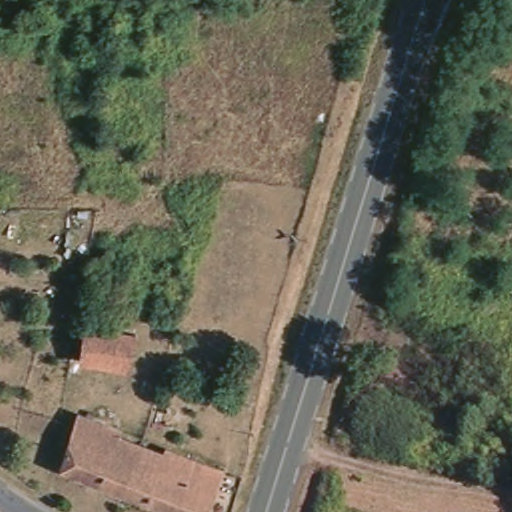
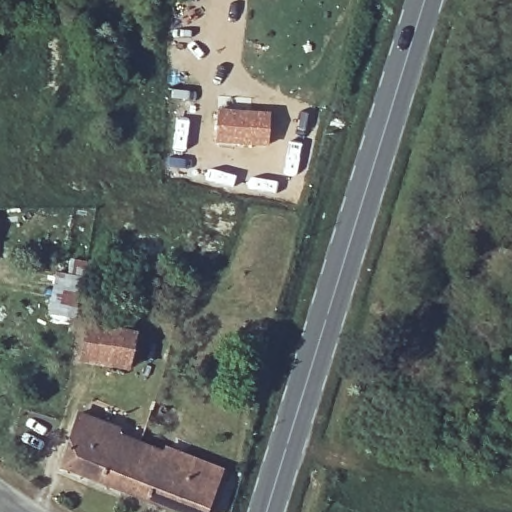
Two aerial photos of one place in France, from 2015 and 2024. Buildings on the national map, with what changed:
new [(267,145),(217,142),(219,110),(270,115),(267,145)]
demolished [(205,297),(237,304),(235,318),(203,311),(205,297)]
unchanged [(87,327),(122,335),(115,370),(80,362),(87,327)]
unchanged [(116,491),(56,466),(76,418),(114,434),(110,445),(130,452),(116,491)]
unchanged [(170,512),(116,491),(130,452),(159,461),(161,453),(212,474),(196,512),(170,512)]

